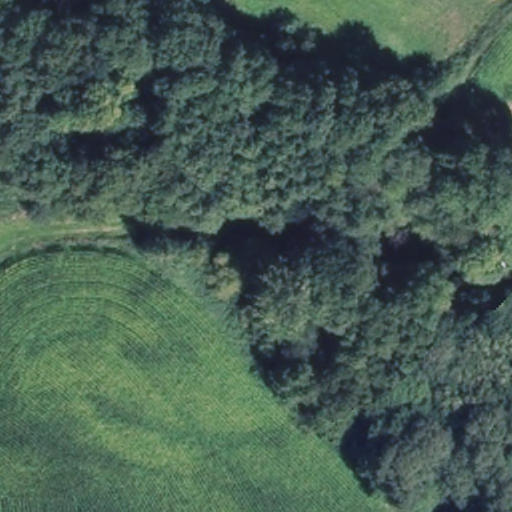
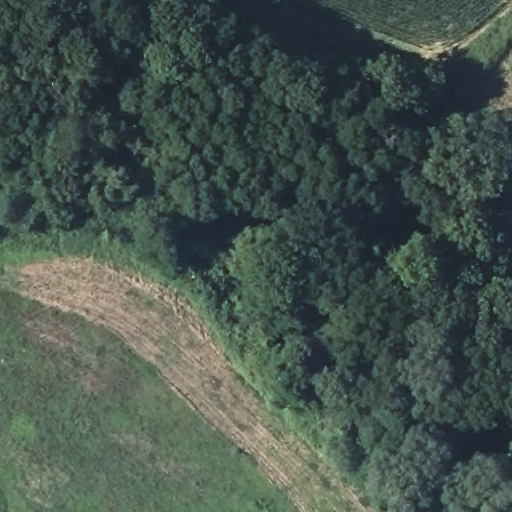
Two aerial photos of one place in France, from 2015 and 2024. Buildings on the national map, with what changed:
[]

